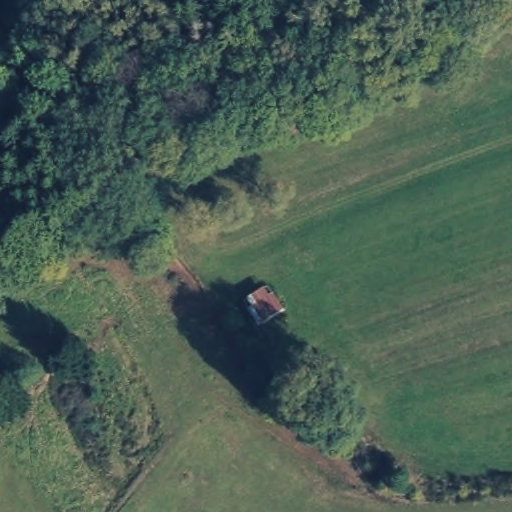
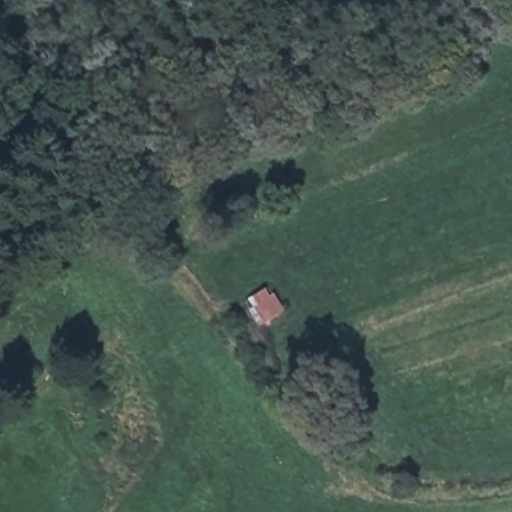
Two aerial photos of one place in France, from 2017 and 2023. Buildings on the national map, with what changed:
unchanged [(259,326),(243,300),(269,285),(285,308),(259,326)]

